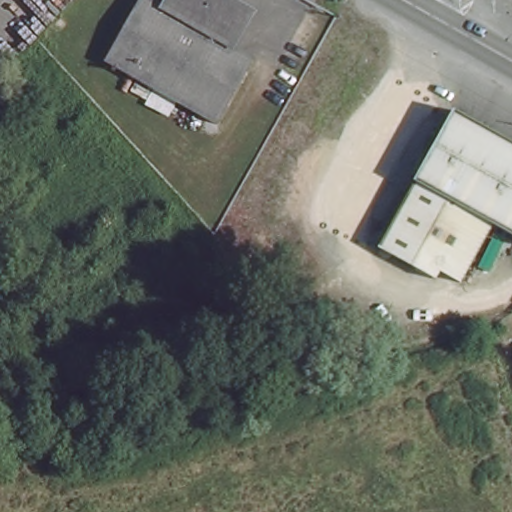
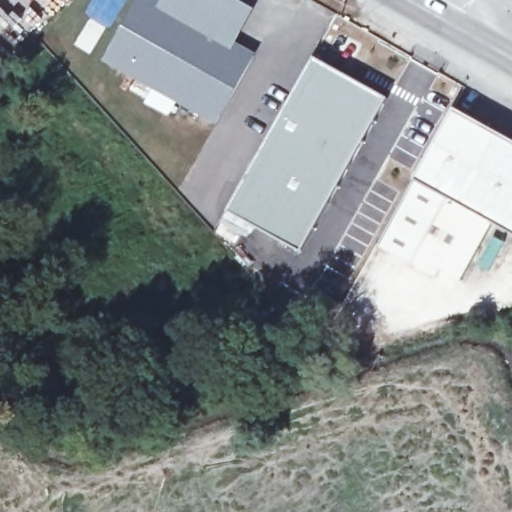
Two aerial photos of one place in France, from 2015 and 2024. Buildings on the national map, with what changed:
unchanged [(249,5),(232,39),(255,51),(220,119),(110,58),(141,0),(157,0),(169,7),(173,0),(238,0),(249,5)]
new [(275,122),(315,55),(389,97),(301,252),(255,226),(253,229),(227,211),(275,122)]
unchanged [(496,223),(469,273),(450,264),(446,276),(388,244),(455,113),(512,144),(512,232),(496,223)]

